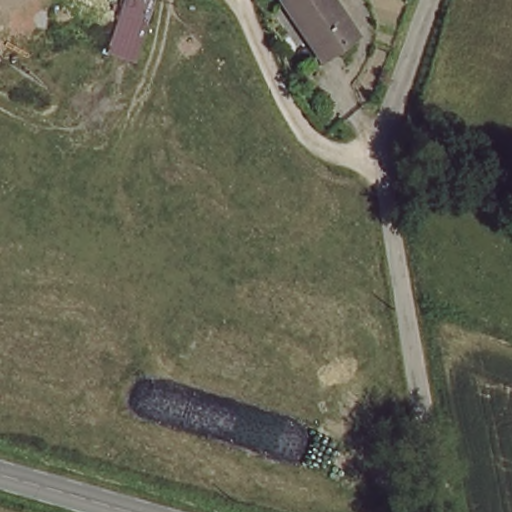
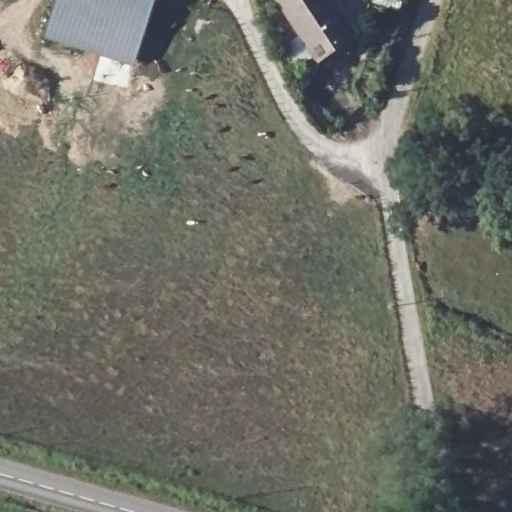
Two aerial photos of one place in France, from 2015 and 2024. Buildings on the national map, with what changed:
new [(42,38),(55,0),(156,0),(132,69),(42,38)]
unchanged [(330,0),(355,36),(318,61),(278,1),(279,0),(330,0)]

